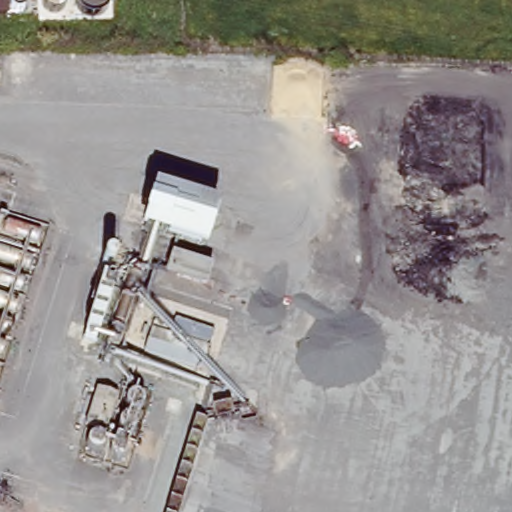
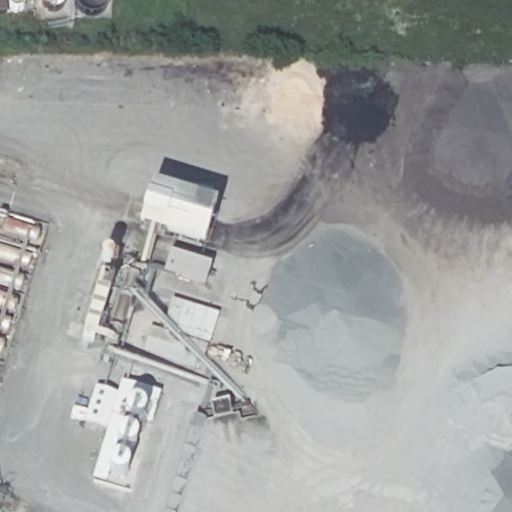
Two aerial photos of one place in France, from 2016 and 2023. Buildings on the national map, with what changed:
unchanged [(37,12),(0,12),(0,0),(38,0),(37,12)]
unchanged [(152,184),(215,202),(205,249),(140,230),(152,184)]

